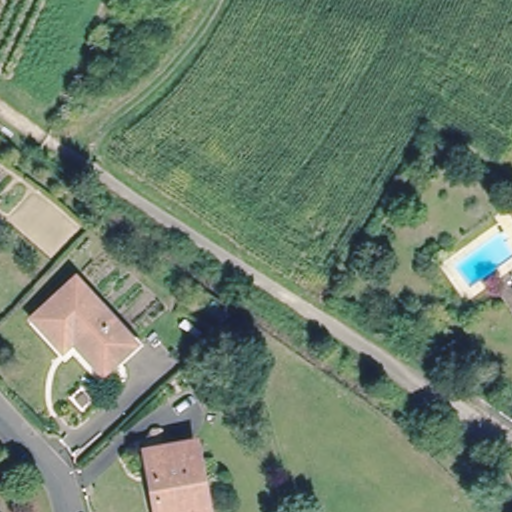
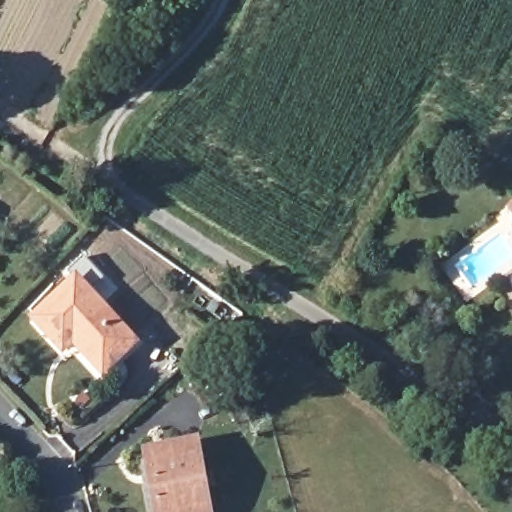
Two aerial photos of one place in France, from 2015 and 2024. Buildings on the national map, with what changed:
unchanged [(36,306),(80,267),(136,331),(104,361),(73,326),(63,335),(36,306)]
unchanged [(150,448),(196,441),(206,512),(158,512),(150,448)]

